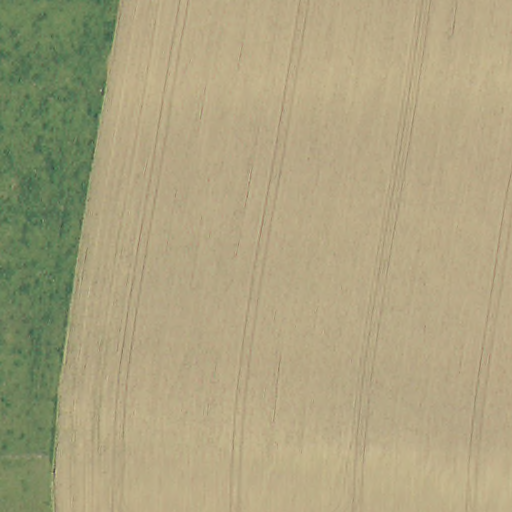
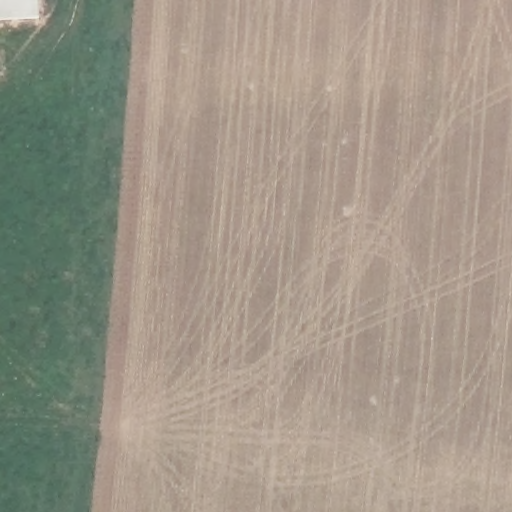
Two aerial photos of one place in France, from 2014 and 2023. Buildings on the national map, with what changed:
new [(0,17),(0,0),(39,0),(39,15),(0,17)]

